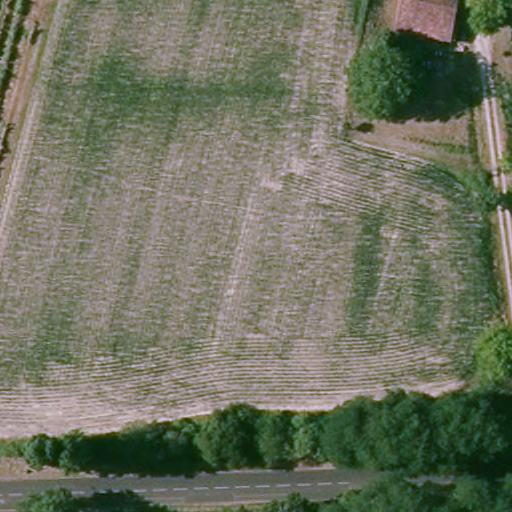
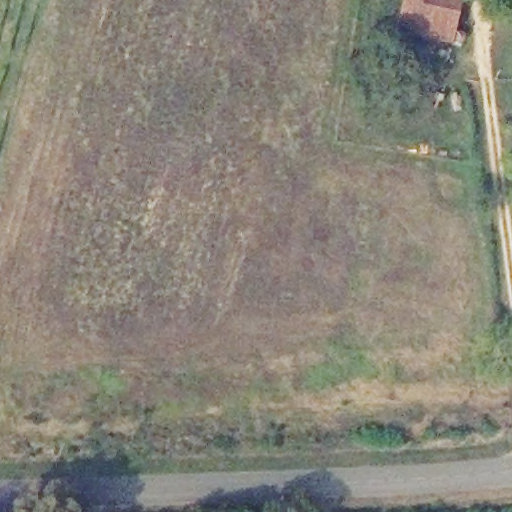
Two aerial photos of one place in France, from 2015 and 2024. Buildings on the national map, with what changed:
unchanged [(454,40),(397,30),(402,0),(463,0),(454,40)]

